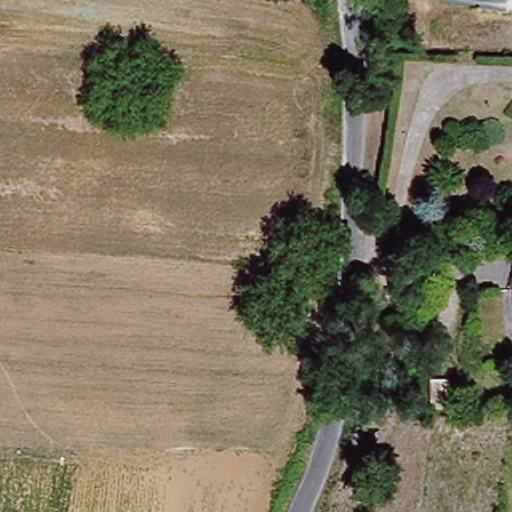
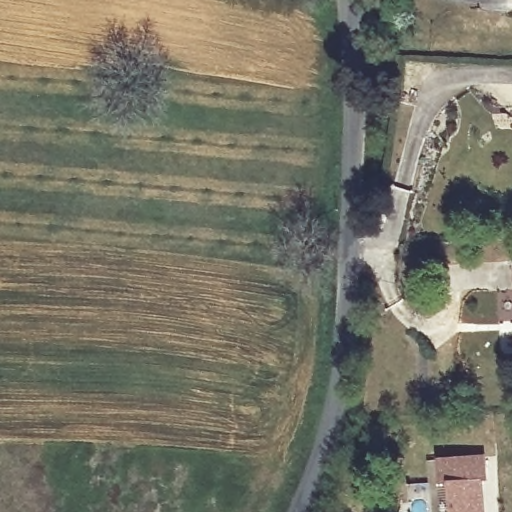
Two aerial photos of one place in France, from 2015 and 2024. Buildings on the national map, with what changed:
unchanged [(452,380),(452,409),(431,409),(431,380),(452,380)]
new [(486,454),(488,475),(480,476),(483,512),(449,512),(447,481),(438,481),(437,457),(486,454)]

